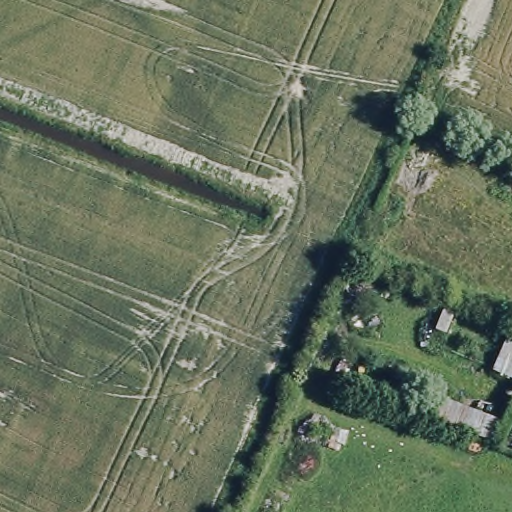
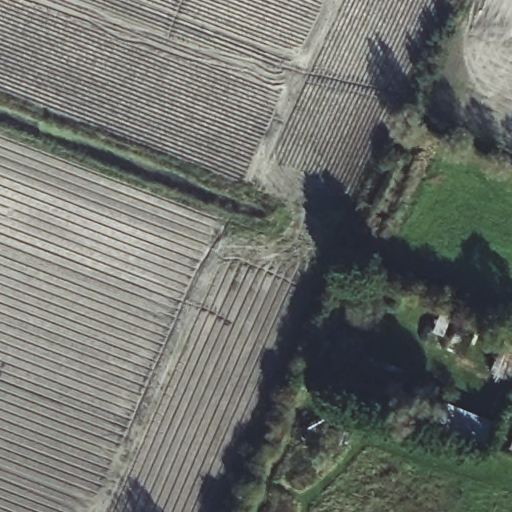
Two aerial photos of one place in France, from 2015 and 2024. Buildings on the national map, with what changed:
unchanged [(492,370),(508,335),(512,337),(512,379),(492,370)]
unchanged [(427,417),(435,395),(498,419),(490,442),(427,417)]

